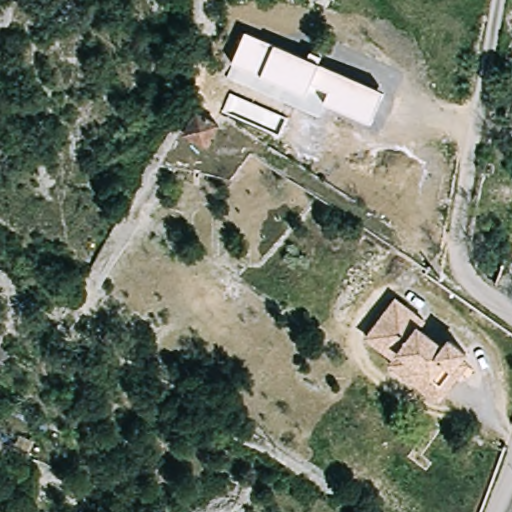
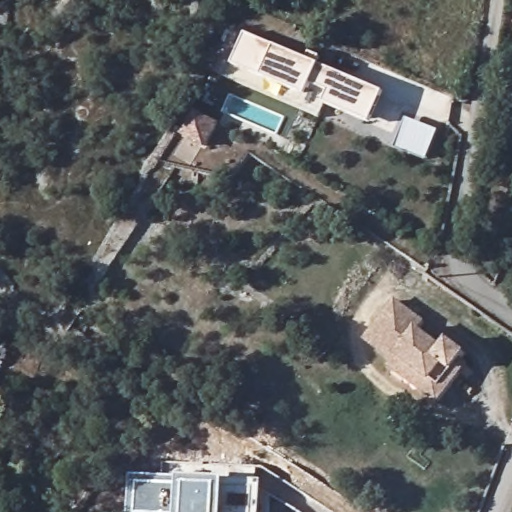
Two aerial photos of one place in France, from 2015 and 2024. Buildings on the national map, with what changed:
unchanged [(374,130),(326,110),(331,97),(314,89),(309,100),(265,82),(235,70),(248,39),(277,50),(323,71),(387,99),(374,130)]
unchanged [(198,100),(224,117),(217,130),(220,131),(208,151),(186,140),(197,120),(189,115),(198,100)]
unchanged [(390,360),(362,340),(390,300),(420,322),(415,329),(440,347),(445,340),(462,353),(457,360),(463,364),(457,372),(451,368),(429,397),(413,385),(386,366),(390,360)]
new [(131,473),(180,477),(226,480),(261,480),(259,512),(129,512),(131,473)]

